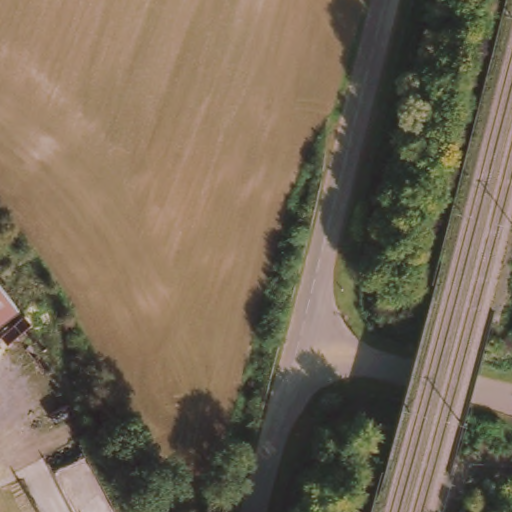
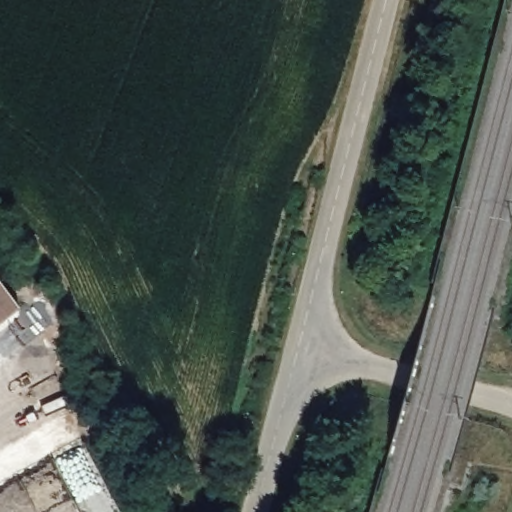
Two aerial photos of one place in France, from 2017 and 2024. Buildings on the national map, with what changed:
unchanged [(18,309),(0,323),(0,286),(18,309)]

